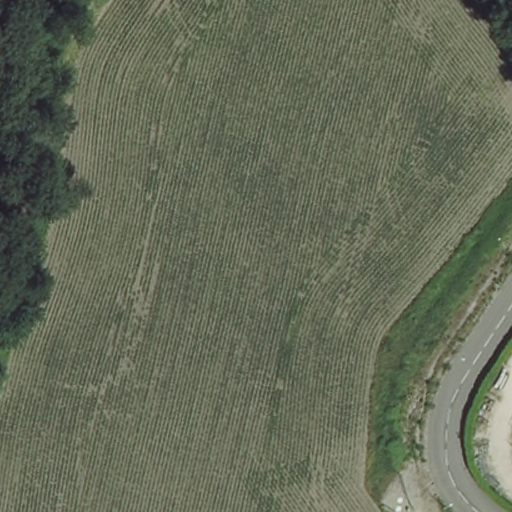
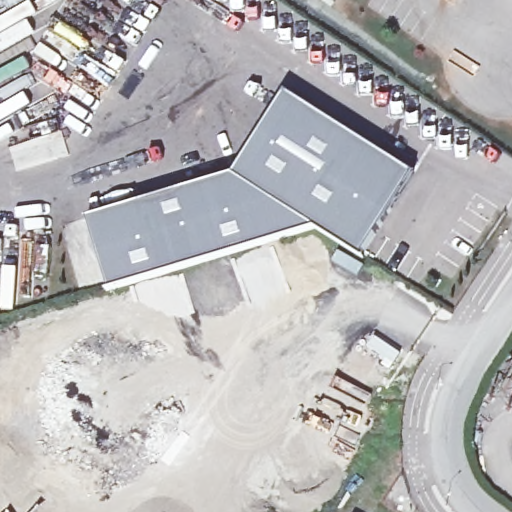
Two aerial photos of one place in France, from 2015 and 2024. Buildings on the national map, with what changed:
new [(335,4),(329,0),(337,0),(335,4)]
new [(87,219),(233,174),(285,92),(415,174),(360,258),(314,228),(110,291),(87,219)]

